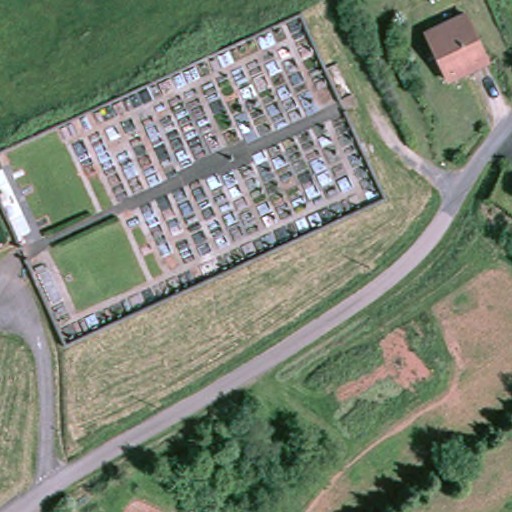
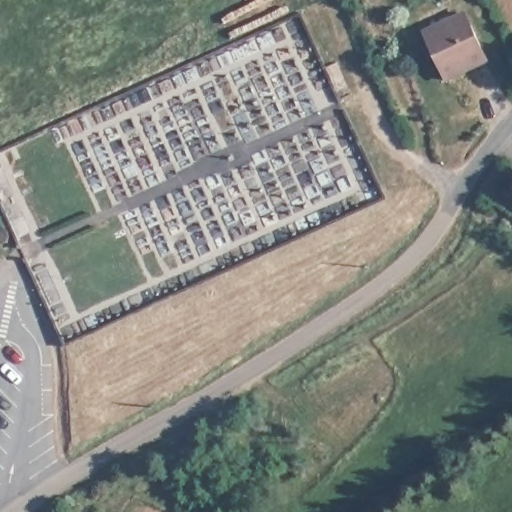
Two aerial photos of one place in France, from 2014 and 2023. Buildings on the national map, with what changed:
unchanged [(491,61),(450,80),(442,62),(429,31),(433,29),(470,13),(491,61)]

